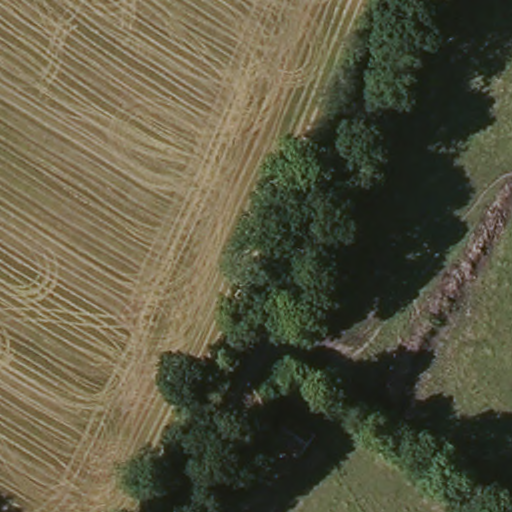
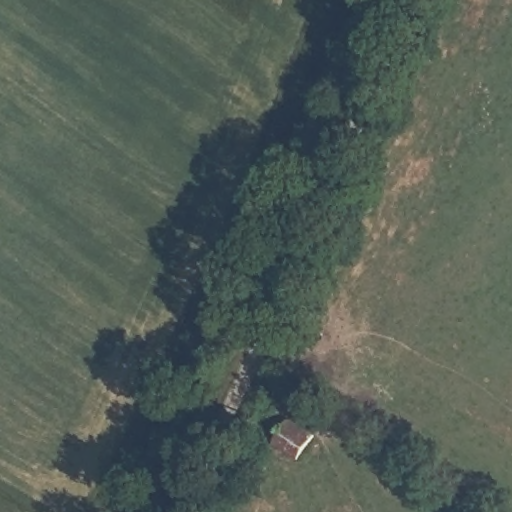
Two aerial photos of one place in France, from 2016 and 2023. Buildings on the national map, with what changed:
unchanged [(308,432),(296,459),(271,447),(283,419),(308,432)]

